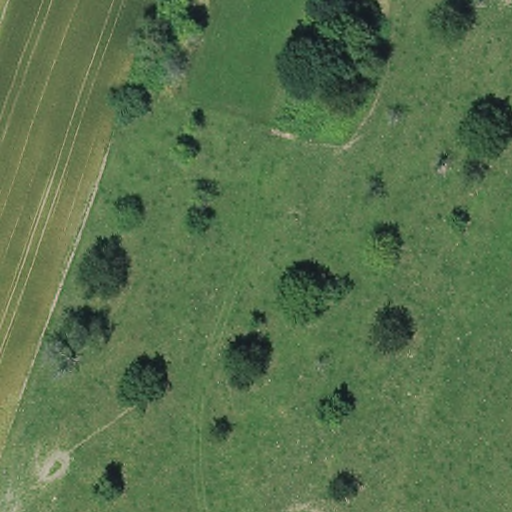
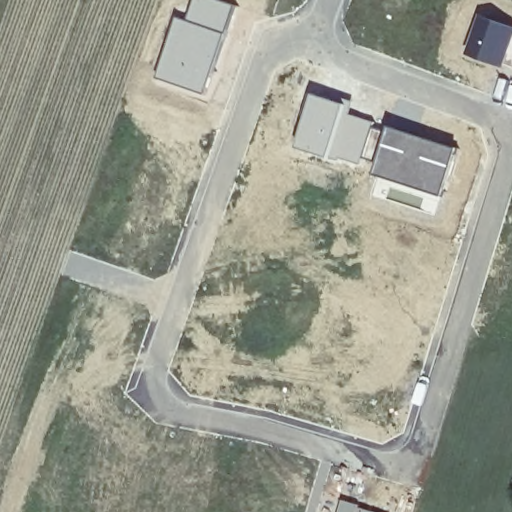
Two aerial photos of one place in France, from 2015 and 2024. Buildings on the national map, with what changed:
new [(220,0),(237,6),(226,34),(189,20),(197,0),(220,0)]
new [(506,67),(464,53),(479,14),(512,27),(512,67),(507,65),(506,67)]
new [(180,16),(189,20),(226,34),(204,95),(158,77),(180,16)]
new [(314,92),(351,105),(349,112),(376,122),(375,127),(385,130),(376,161),(364,158),(362,166),(298,147),(314,92)]
new [(394,127),(461,148),(444,197),(378,175),(394,127)]

